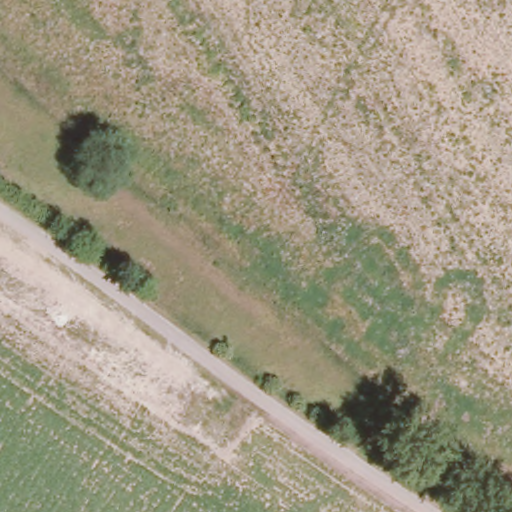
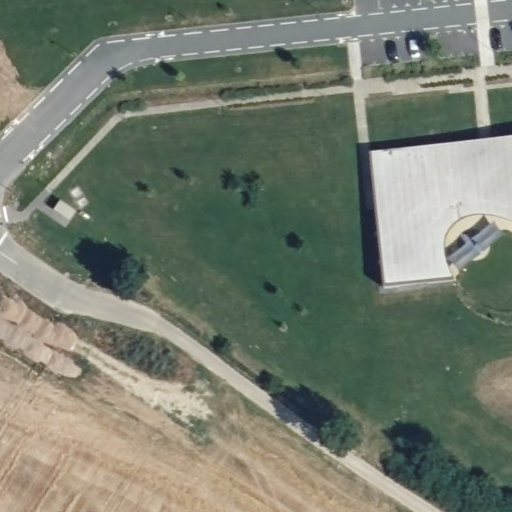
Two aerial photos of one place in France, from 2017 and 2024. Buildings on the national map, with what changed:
new [(496,217),(476,216),(462,220),(457,224),(451,232),(448,238),(446,247),(448,260),(456,281),(449,282),(385,288),(371,152),(512,137),(512,223),(496,217)]
new [(61,201),(77,212),(71,221),(56,211),(61,201)]

